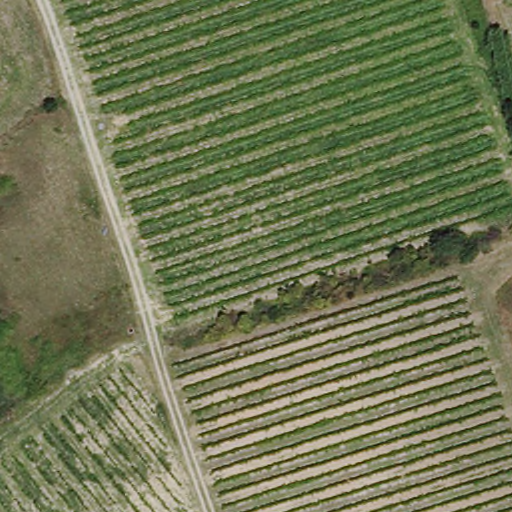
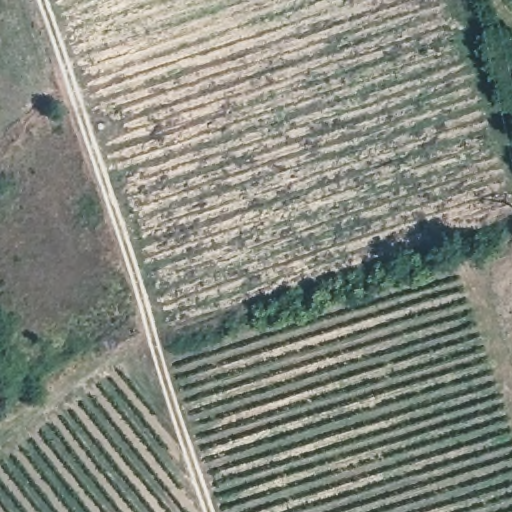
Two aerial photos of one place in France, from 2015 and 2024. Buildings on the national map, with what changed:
[]

